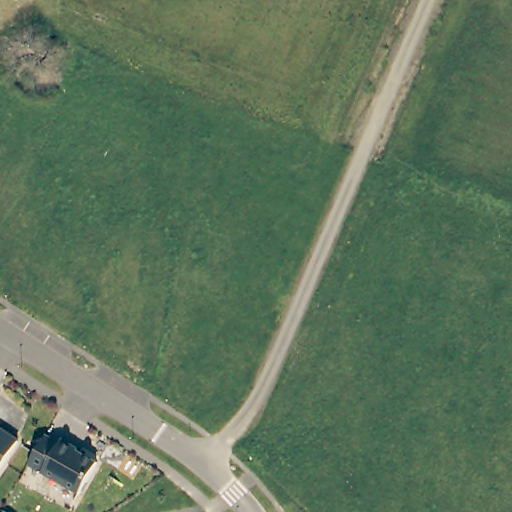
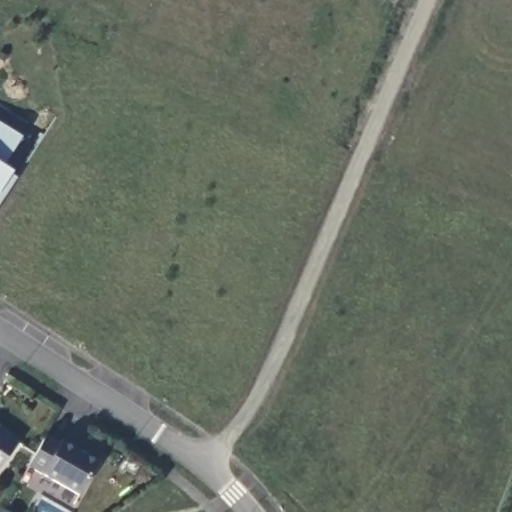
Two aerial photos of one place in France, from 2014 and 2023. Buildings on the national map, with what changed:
new [(2,165),(11,173),(17,178),(0,205),(0,123),(22,137),(2,165)]
unchanged [(24,428),(2,461),(0,460),(0,412),(24,428)]
unchanged [(55,431),(57,427),(73,436),(72,438),(93,450),(75,483),(24,454),(33,438),(41,423),(55,431)]

